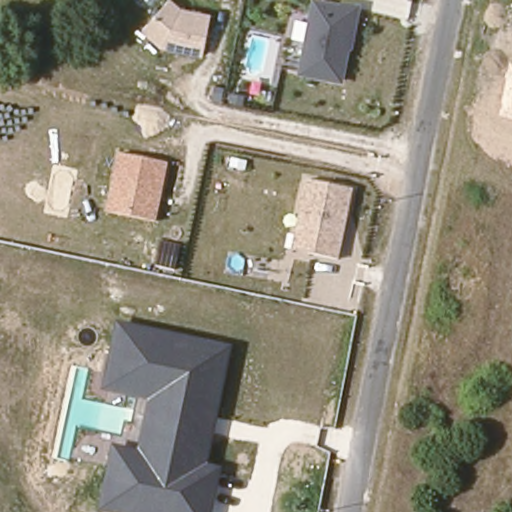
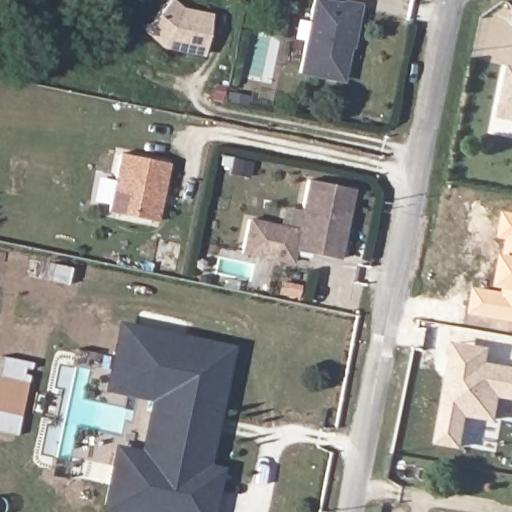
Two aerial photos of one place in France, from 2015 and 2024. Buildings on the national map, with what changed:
unchanged [(141,29),(170,0),(171,0),(180,7),(210,13),(200,56),(160,49),(141,29)]
unchanged [(322,0),(360,6),(342,82),(299,74),(312,0),(322,0)]
unchanged [(501,118),(510,64),(512,65),(512,120),(501,118)]
unchanged [(167,164),(154,220),(108,211),(119,154),(167,164)]
unchanged [(339,258),(292,252),(305,180),(353,190),(339,258)]
new [(471,313),(476,286),(506,291),(507,286),(498,285),(503,252),(507,253),(508,238),(499,237),(504,209),(512,211),(512,320),(471,313)]
new [(292,252),(295,252),(293,263),(240,252),(248,217),(297,227),(292,252)]
new [(156,240),(182,246),(177,271),(151,265),(156,240)]
unchanged [(209,461),(223,465),(211,512),(105,512),(98,510),(114,443),(139,449),(149,400),(100,389),(116,320),(233,346),(209,461)]
new [(499,420),(469,416),(464,447),(437,443),(454,340),(492,347),(489,361),(512,365),(512,399),(503,397),(499,420)]

